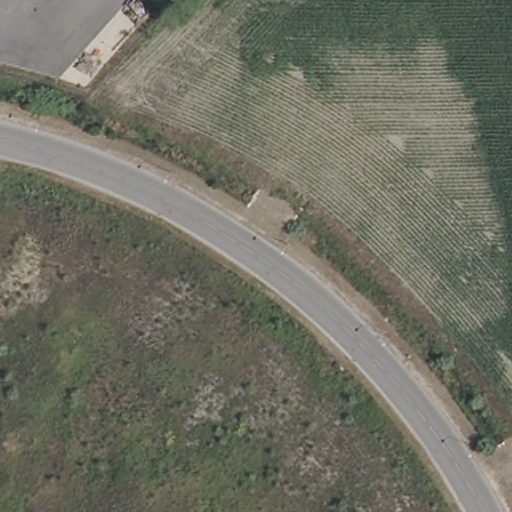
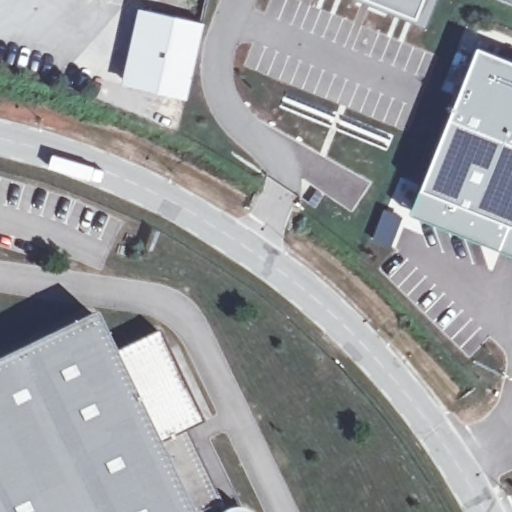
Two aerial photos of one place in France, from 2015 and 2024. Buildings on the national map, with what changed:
new [(416,20),(367,0),(435,0),(425,23),(416,20)]
new [(145,10),(202,22),(185,98),(129,85),(145,10)]
new [(442,229),(407,213),(474,43),(512,58),(512,256),(442,229)]
new [(383,208),(402,216),(391,246),(372,239),(383,208)]
new [(0,512),(0,357),(92,312),(110,352),(157,330),(200,421),(183,431),(218,504),(198,512),(0,512)]

